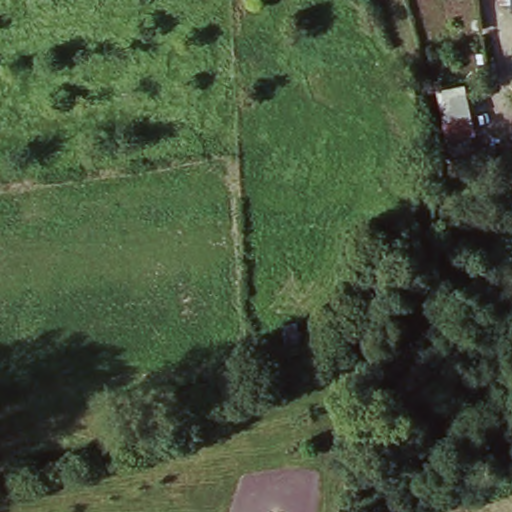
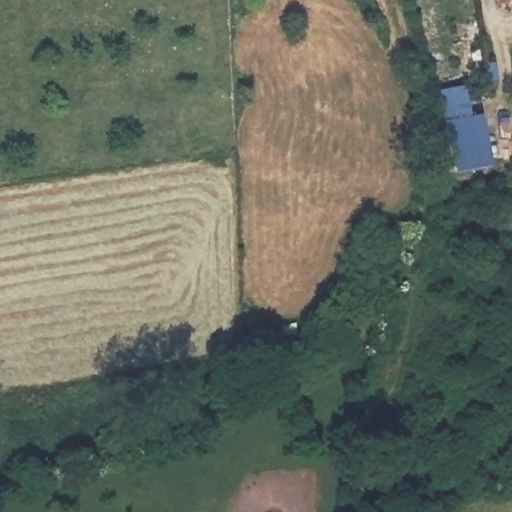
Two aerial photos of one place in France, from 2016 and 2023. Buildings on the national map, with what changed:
unchanged [(492,4),(492,0),(512,0),(512,11),(500,12),(503,4),(492,4)]
unchanged [(492,61),(492,83),(482,83),(480,59),(492,61)]
unchanged [(462,81),(463,107),(437,108),(435,82),(462,81)]
new [(487,163),(453,171),(444,121),(480,113),(487,163)]

